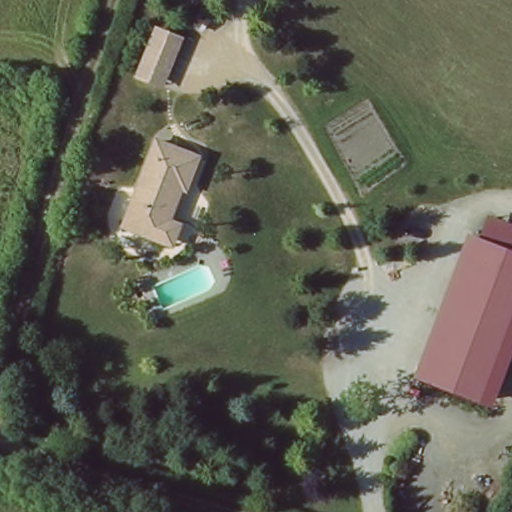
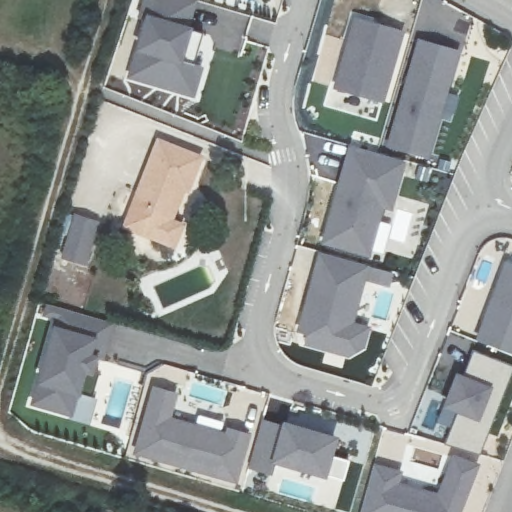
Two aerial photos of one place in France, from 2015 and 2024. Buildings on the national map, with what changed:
new [(207,20),(195,56),(212,61),(203,95),(129,72),(144,27),(154,1),(148,0),(193,0),(189,15),(207,20)]
new [(415,31),(395,99),(338,84),(360,14),(415,31)]
demolished [(132,84),(154,27),(183,38),(160,94),(132,84)]
new [(465,49),(435,154),(391,141),(422,37),(465,49)]
unchanged [(204,154),(191,197),(185,194),(177,220),(184,223),(175,249),(127,228),(159,139),(204,154)]
new [(348,145),(406,161),(392,211),(384,209),(379,221),(392,224),(383,254),(372,250),(370,259),(321,244),(348,145)]
new [(106,215),(94,260),(67,254),(79,209),(106,215)]
demolished [(413,382),(473,222),(512,241),(512,338),(486,412),(413,382)]
new [(316,250),(393,272),(389,288),(365,281),(355,320),(372,326),(365,350),(350,359),(345,358),(342,369),(321,363),(324,353),(299,346),(302,334),(293,332),(316,250)]
new [(503,259),(512,262),(512,355),(475,340),(503,259)]
new [(59,306),(115,323),(92,394),(80,390),(73,414),(29,401),(41,363),(59,306)]
new [(456,412),(443,408),(456,373),(463,376),(472,351),(512,366),(512,369),(480,454),(444,444),(456,412)]
new [(150,384),(178,391),(172,417),(251,433),(238,487),(130,459),(150,384)]
new [(274,461),(284,424),(335,439),(331,455),(349,461),(343,481),(274,461)]

